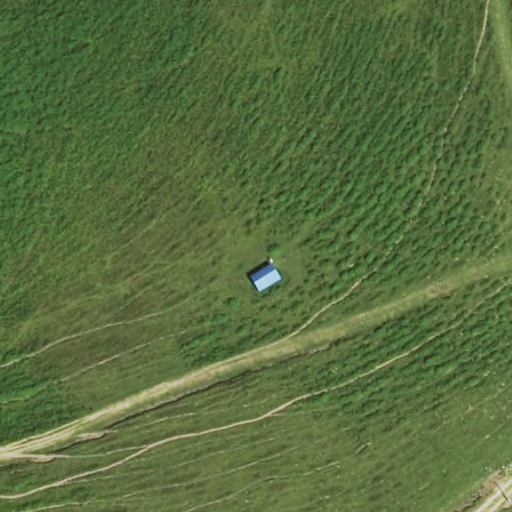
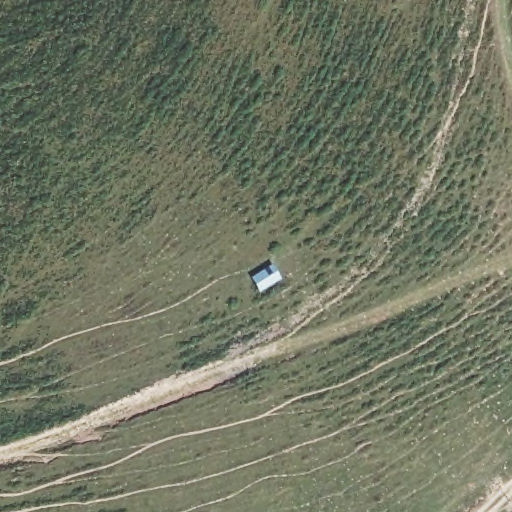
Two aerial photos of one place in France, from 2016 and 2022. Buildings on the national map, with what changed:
unchanged [(280,278),(257,294),(246,279),(270,265),(280,278)]

